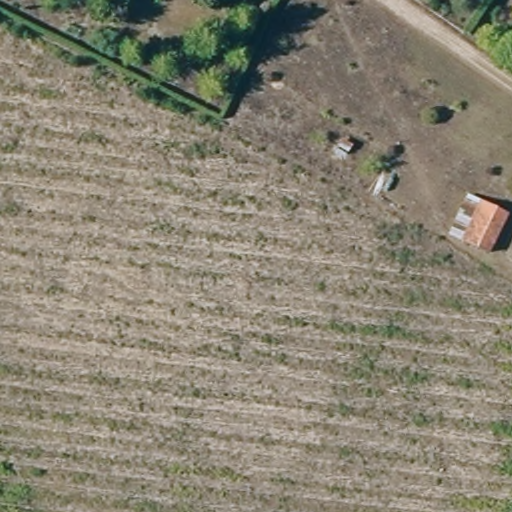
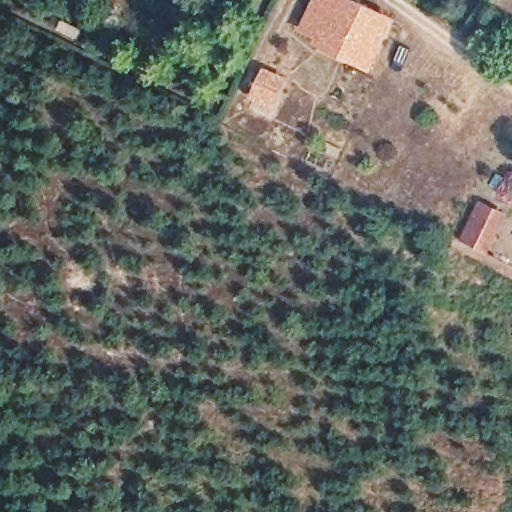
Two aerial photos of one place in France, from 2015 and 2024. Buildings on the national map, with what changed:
new [(312,0),(357,0),(396,17),(371,71),(326,49),(297,32),(312,0)]
new [(264,68),(284,78),(272,102),(253,92),(264,68)]
unchanged [(487,259),(461,243),(467,229),(454,222),(467,198),(482,206),(508,216),(487,259)]

